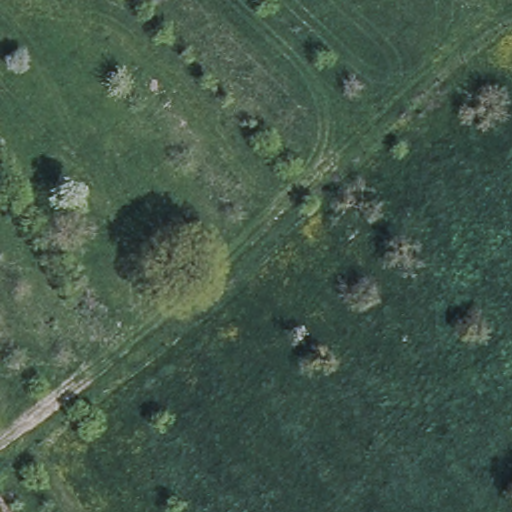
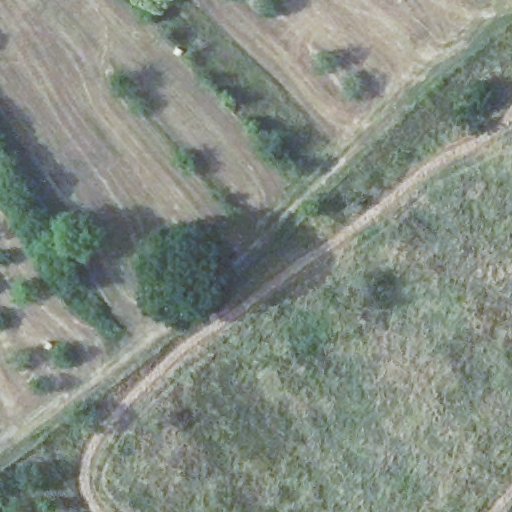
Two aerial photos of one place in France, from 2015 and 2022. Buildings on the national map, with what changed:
[]

